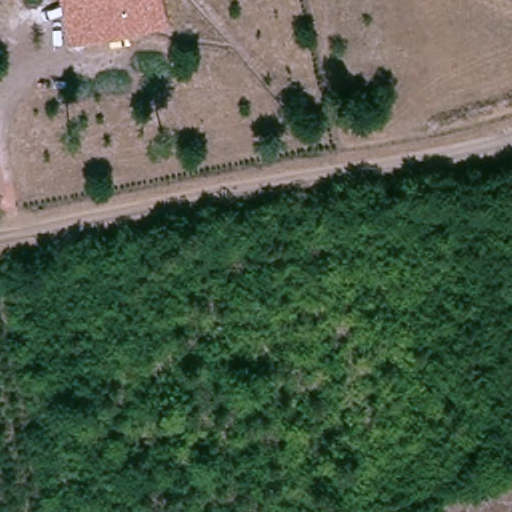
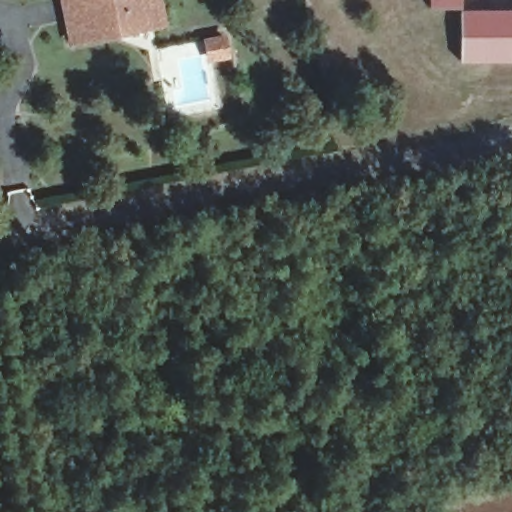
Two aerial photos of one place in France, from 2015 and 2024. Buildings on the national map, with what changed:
unchanged [(64,0),(79,0),(154,0),(157,21),(127,26),(70,36),(64,0)]
new [(461,63),(460,11),(512,11),(512,62),(461,63)]

